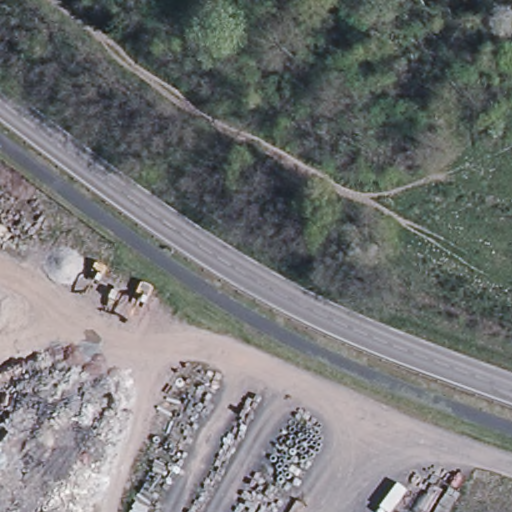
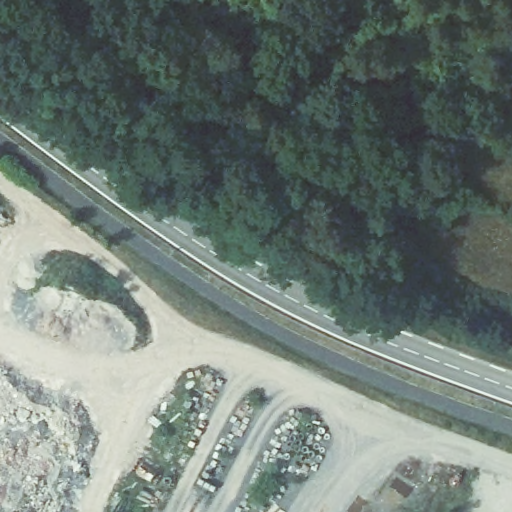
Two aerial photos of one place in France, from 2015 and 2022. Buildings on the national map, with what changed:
[]

